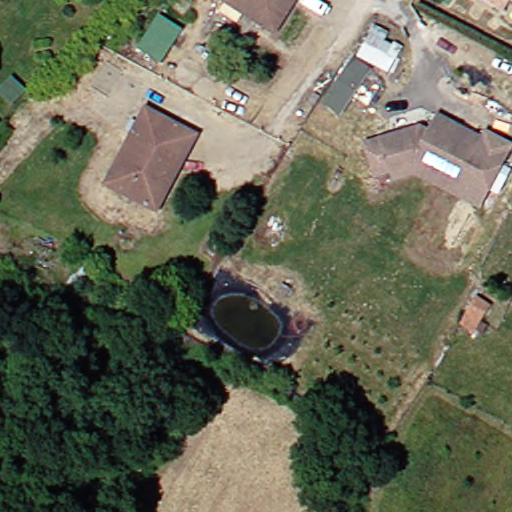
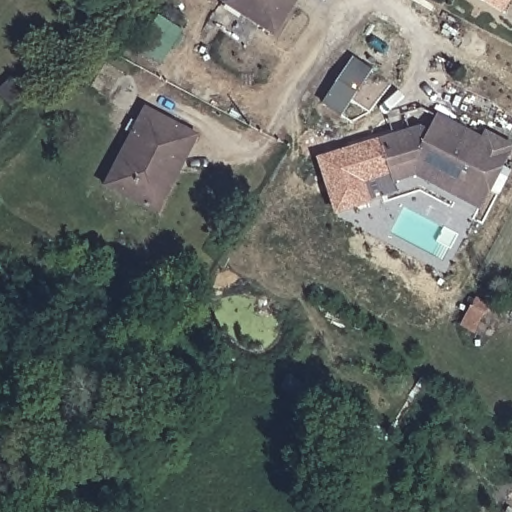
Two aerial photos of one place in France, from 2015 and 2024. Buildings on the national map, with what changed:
unchanged [(212,0),(286,0),(267,33),(234,13),(216,2),(212,0)]
unchanged [(493,11),(477,0),(500,0),(493,11)]
unchanged [(183,30),(162,63),(136,48),(157,16),(183,30)]
unchanged [(364,70),(333,116),(313,104),(343,56),(364,70)]
unchanged [(132,205),(95,184),(139,105),(190,135),(176,157),(145,211),(132,205)]
unchanged [(414,157),(391,163),(393,169),(376,172),(370,140),(423,127),(433,132),(443,117),(486,139),(490,132),(512,144),(512,152),(488,197),(414,157)]
new [(373,159),(376,172),(393,169),(409,177),(395,184),(397,192),(333,217),(314,158),(370,140),(373,159)]
unchanged [(478,215),(393,169),(391,163),(414,157),(488,197),(478,215)]

